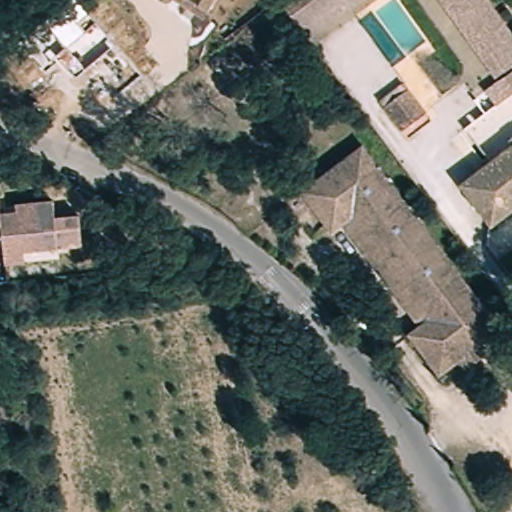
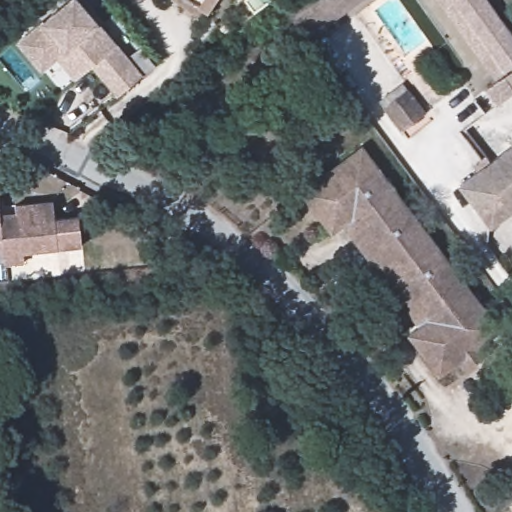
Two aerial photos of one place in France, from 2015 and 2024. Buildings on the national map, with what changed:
new [(89,68),(74,80),(56,59),(39,72),(15,44),(40,24),(67,0),(78,0),(98,25),(115,44),(141,75),(116,97),(89,68)]
unchanged [(203,22),(171,1),(171,0),(218,0),(203,22)]
unchanged [(299,45),(274,13),(291,0),(356,0),(299,45)]
unchanged [(306,53),(299,45),(356,0),(376,0),(306,53)]
unchanged [(495,80),(433,0),(446,0),(504,74),(495,80)]
unchanged [(512,39),(512,67),(504,74),(446,0),(482,0),(512,39)]
unchanged [(497,105),(486,92),(491,88),(512,71),(512,92),(501,101),(497,105)]
unchanged [(410,89),(428,113),(400,134),(382,110),(410,89)]
demolished [(437,131),(456,155),(429,177),(410,153),(437,131)]
unchanged [(355,154),(495,334),(460,363),(429,323),(350,226),(317,184),(355,154)]
unchanged [(512,155),(512,221),(496,235),(495,233),(464,195),(482,180),(512,155)]
unchanged [(326,244),(293,202),(317,184),(350,226),(326,244)]
unchanged [(0,239),(0,227),(0,217),(15,217),(15,209),(52,209),(52,226),(75,226),(75,256),(52,256),(17,256),(17,266),(17,267),(0,267),(0,239)]
unchanged [(437,382),(404,341),(429,323),(460,363),(437,382)]

